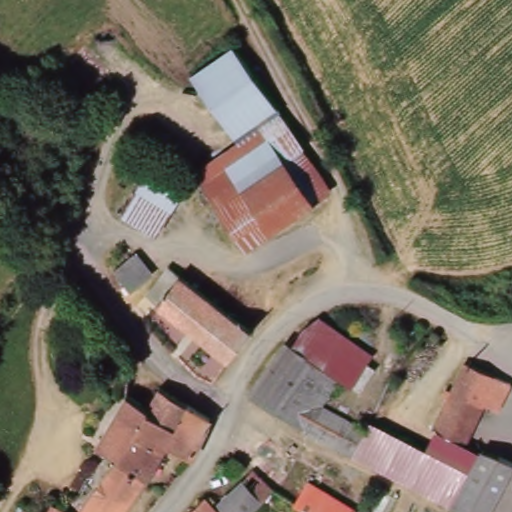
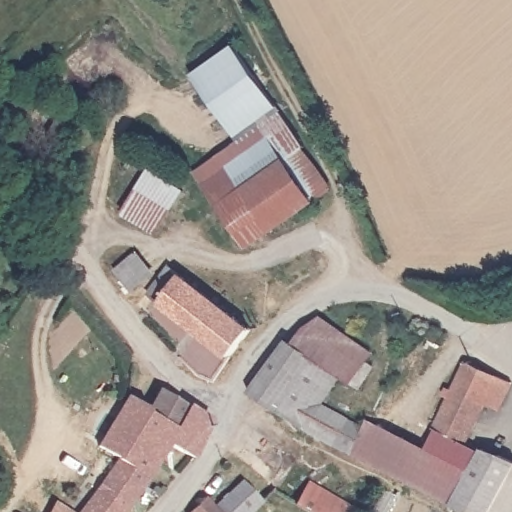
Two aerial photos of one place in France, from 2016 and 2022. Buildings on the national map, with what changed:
unchanged [(279,106),(237,137),(192,73),(235,45),(279,106)]
unchanged [(318,203),(248,250),(217,205),(194,172),(282,112),(336,189),(318,203)]
unchanged [(185,189),(160,230),(127,211),(153,169),(185,189)]
unchanged [(135,287),(124,273),(136,261),(148,275),(135,287)]
unchanged [(254,329),(217,380),(202,373),(192,363),(201,352),(211,360),(220,346),(153,296),(175,269),(251,326),(254,329)]
unchanged [(375,352),(357,382),(346,376),(344,375),(289,337),(318,321),(322,317),(375,352)]
unchanged [(324,438),(251,391),(285,341),(289,337),(344,375),(328,401),(360,419),(371,425),(354,453),(324,438)]
unchanged [(468,440),(443,428),(435,425),(468,360),(473,361),(502,374),(500,377),(468,440)]
unchanged [(193,456),(172,442),(148,477),(121,458),(106,448),(101,445),(130,401),(146,411),(148,408),(162,385),(164,389),(187,405),(211,422),(193,456)]
unchanged [(354,453),(371,425),(381,431),(388,420),(403,427),(396,439),(429,455),(416,483),(354,453)]
unchanged [(470,474),(485,446),(512,454),(512,512),(475,512),(416,483),(429,455),(470,474)]
unchanged [(148,477),(124,512),(55,512),(58,503),(65,506),(106,448),(121,458),(148,477)]
unchanged [(225,512),(217,504),(245,479),(255,470),(276,486),(252,512),(225,512)]
unchanged [(314,512),(285,496),(299,476),(348,502),(343,512),(314,512)]
unchanged [(207,495),(217,504),(225,512),(193,512),(199,502),(207,495)]

